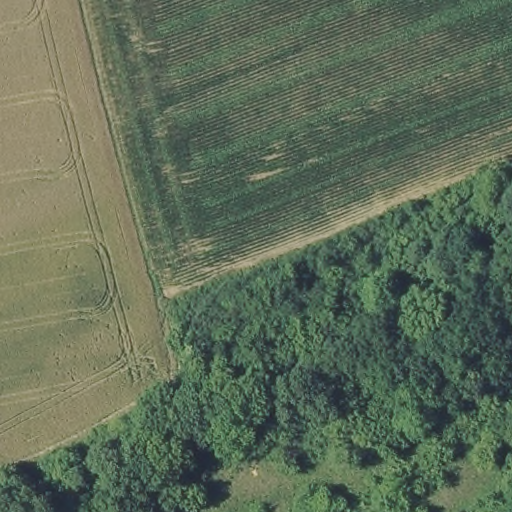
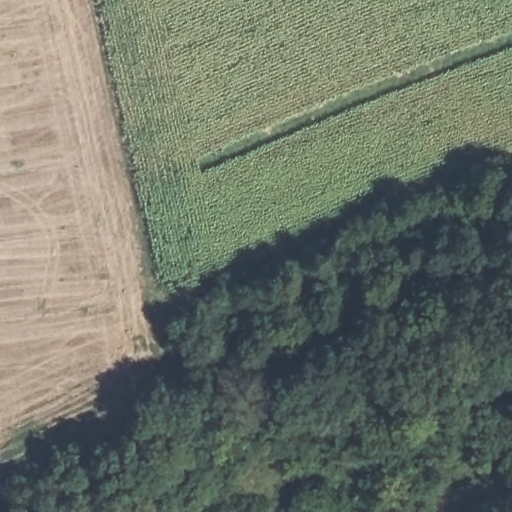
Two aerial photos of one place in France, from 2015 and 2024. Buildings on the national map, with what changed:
[]

